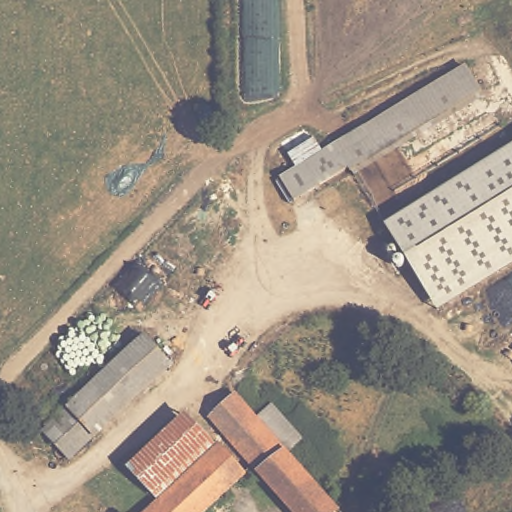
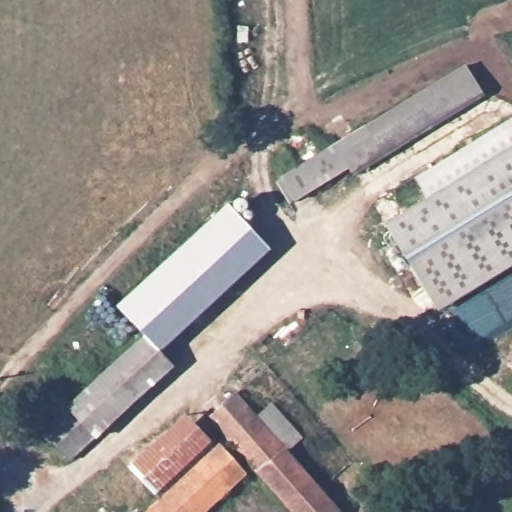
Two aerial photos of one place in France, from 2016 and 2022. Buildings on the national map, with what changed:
unchanged [(339,149),(466,53),(484,78),(359,174),(356,171),(339,149)]
unchanged [(439,299),(393,238),(512,147),(512,242),(439,299)]
unchanged [(304,209),(289,188),(339,149),(356,171),(304,209)]
new [(229,202),(272,248),(161,349),(143,334),(116,304),(229,202)]
unchanged [(512,242),(512,271),(452,317),(439,299),(512,242)]
unchanged [(172,358),(99,436),(72,409),(143,334),(172,358)]
unchanged [(229,391),(340,494),(325,512),(317,512),(208,413),(229,391)]
unchanged [(72,409),(99,436),(76,461),(48,436),(72,409)]
unchanged [(174,414),(199,439),(148,493),(121,468),(174,414)]
unchanged [(213,439),(241,467),(198,512),(143,512),(213,439)]

